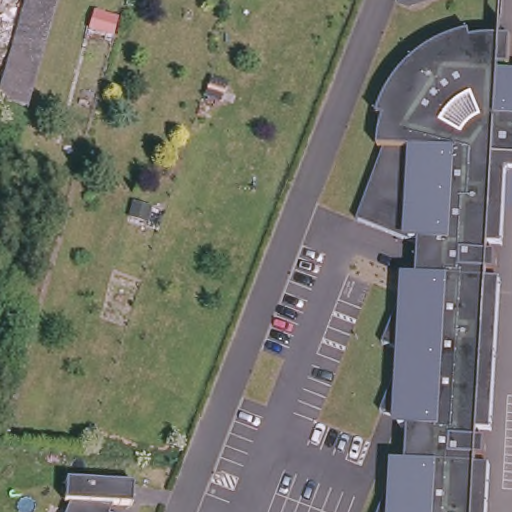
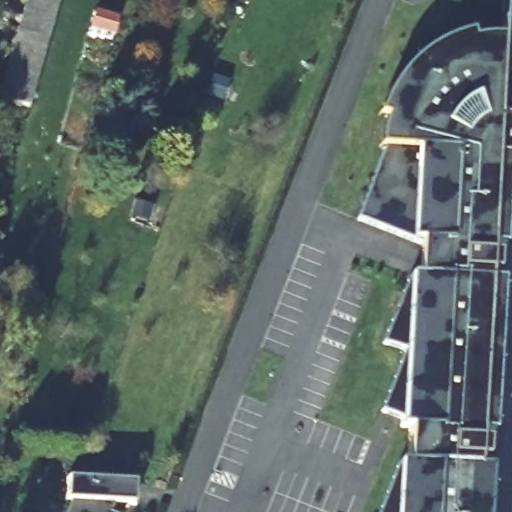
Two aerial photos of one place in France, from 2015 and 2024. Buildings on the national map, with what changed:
unchanged [(57,0),(36,71),(8,64),(25,0),(57,0)]
unchanged [(408,5),(404,1),(404,0),(430,0),(413,5),(408,5)]
unchanged [(512,0),(512,80),(499,80),(501,40),(503,0),(512,0)]
unchanged [(396,462),(404,462),(404,427),(397,427),(397,420),(374,411),(398,350),(376,342),(401,276),(408,276),(419,244),(356,220),(379,147),(384,148),(384,117),(378,115),(381,106),(388,92),(396,80),(406,68),(417,58),(429,49),(443,41),(457,36),(469,33),(472,40),(484,39),(501,40),(499,80),(512,80),(512,172),(507,171),(502,247),(489,246),(489,255),(496,255),(495,272),(488,272),(487,281),(500,281),(492,433),(479,432),(478,441),(486,441),(484,458),(477,458),(477,467),(490,467),(488,512),(377,512),(396,462)]
unchanged [(26,105),(0,99),(0,91),(8,64),(36,71),(26,105)]
unchanged [(107,503),(103,512),(66,512),(69,502),(64,501),(66,479),(133,483),(132,505),(107,503)]

